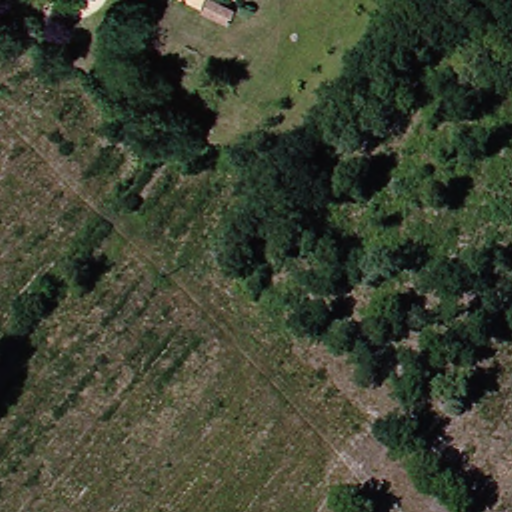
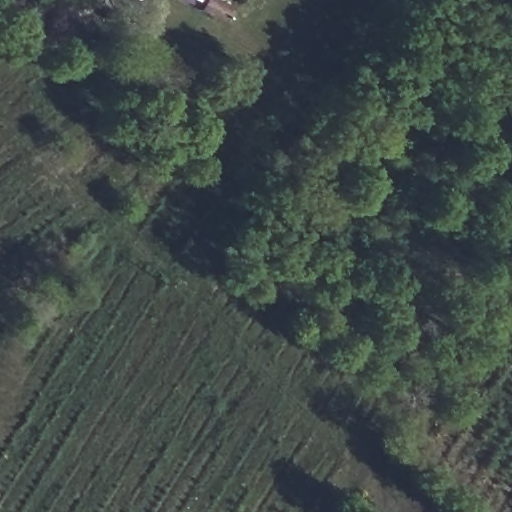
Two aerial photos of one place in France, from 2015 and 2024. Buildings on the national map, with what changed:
unchanged [(220,14),(215,23),(192,11),(198,1),(220,14)]

